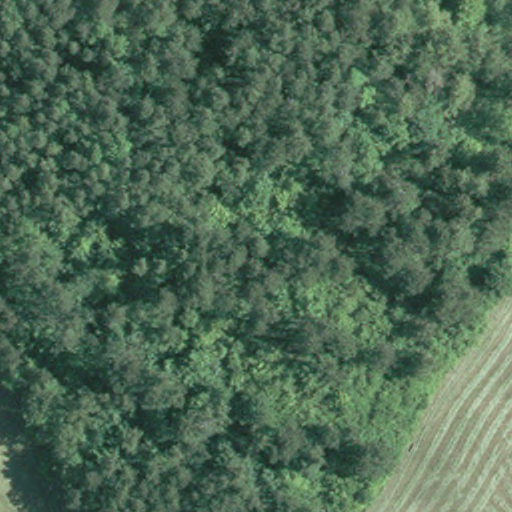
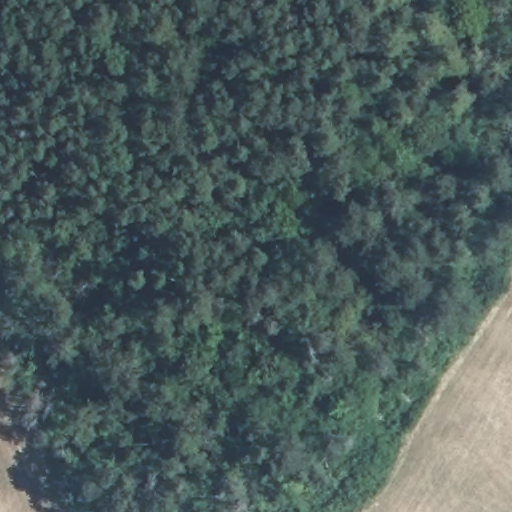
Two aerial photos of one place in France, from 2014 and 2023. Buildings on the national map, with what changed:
unchanged [(444,278),(442,285),(436,281),(444,278)]

